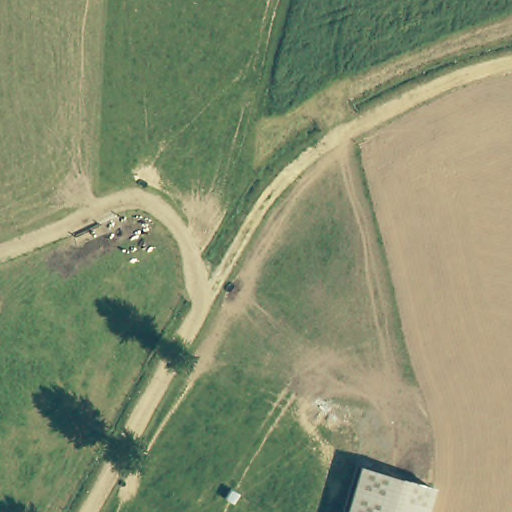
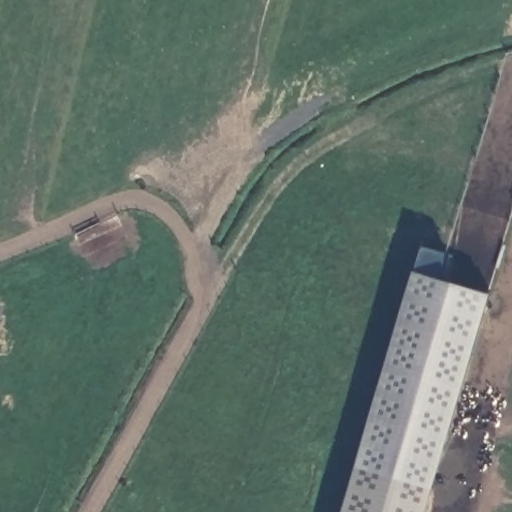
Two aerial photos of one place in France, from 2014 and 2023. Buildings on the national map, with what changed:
new [(445,281),(491,296),(431,487),(355,465),(421,246),(451,256),(445,281)]
unchanged [(355,465),(431,487),(424,512),(341,512),(355,465)]

